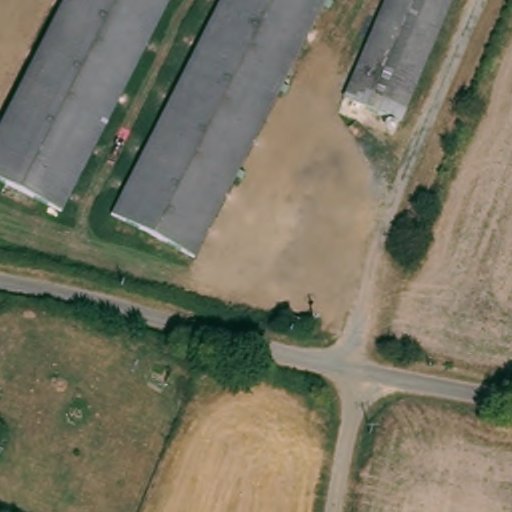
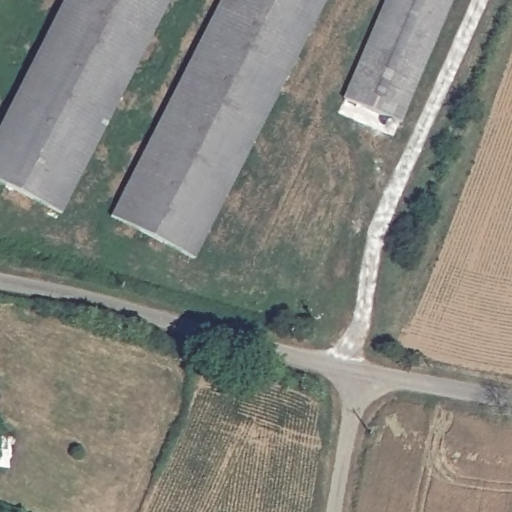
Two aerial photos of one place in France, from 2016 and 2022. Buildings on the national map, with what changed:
unchanged [(0,185),(0,140),(69,0),(169,0),(62,216),(0,185)]
unchanged [(116,220),(225,0),(326,0),(197,259),(116,220)]
unchanged [(342,94),(388,0),(455,0),(395,120),(342,94)]

